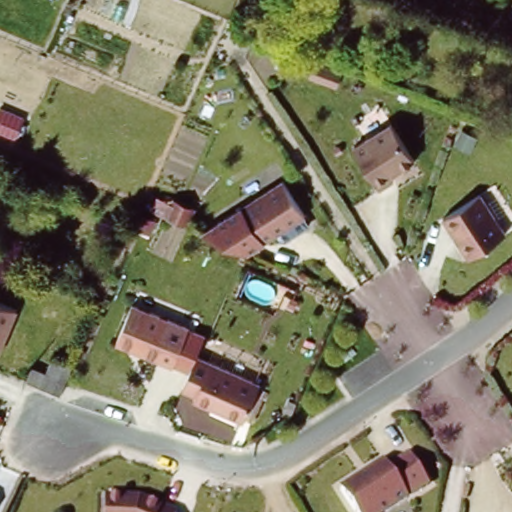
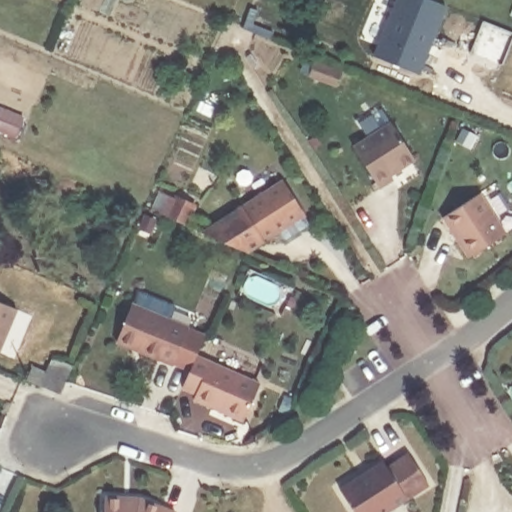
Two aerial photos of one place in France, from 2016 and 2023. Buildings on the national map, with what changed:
new [(372,55),(394,0),(429,0),(448,8),(421,75),(372,55)]
new [(509,16),(512,8),(512,17),(509,16)]
unchanged [(394,124),(414,161),(387,176),(391,184),(379,191),(351,146),(394,124)]
unchanged [(239,206),(281,180),(303,217),(263,242),(239,206)]
unchanged [(441,214),(478,190),(504,234),(468,259),(441,214)]
unchanged [(263,242),(248,252),(201,228),(239,206),(263,242)]
unchanged [(113,345),(132,298),(191,321),(169,366),(113,345)]
unchanged [(0,354),(0,303),(17,310),(0,354)]
unchanged [(193,397),(197,391),(181,385),(196,352),(259,381),(241,421),(193,397)]
unchanged [(24,382),(31,367),(44,371),(49,359),(71,366),(59,396),(24,382)]
unchanged [(338,485),(379,461),(385,465),(407,448),(428,485),(385,512),(354,512),(338,485)]
unchanged [(100,495),(147,496),(174,509),(173,512),(101,512),(100,495)]

